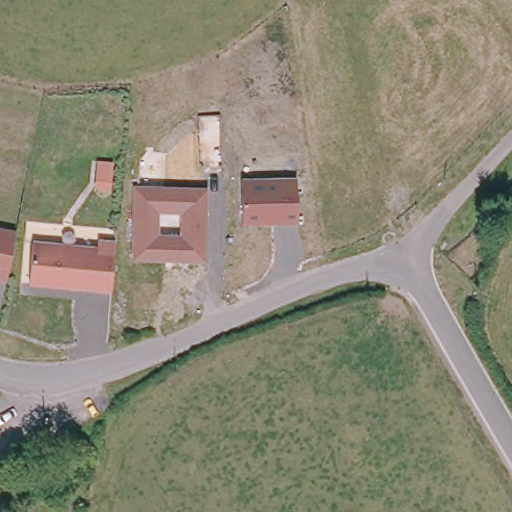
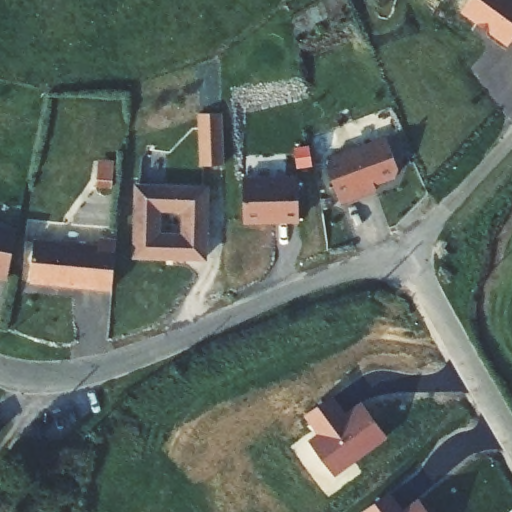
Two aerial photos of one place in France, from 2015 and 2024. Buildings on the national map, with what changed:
new [(512,39),(506,46),(462,13),(471,0),(512,0),(512,39)]
new [(224,166),(199,167),(197,115),(222,114),(224,166)]
new [(330,156),(387,133),(399,165),(395,173),(355,189),(357,194),(342,200),(328,166),(330,156)]
unchanged [(296,177),(297,221),(243,222),(242,178),(296,177)]
unchanged [(207,188),(205,265),(130,261),(134,185),(207,188)]
unchanged [(20,233),(10,282),(0,280),(0,230),(20,233)]
unchanged [(95,250),(97,241),(114,241),(112,293),(33,286),(37,244),(95,250)]
new [(347,412),(362,400),(387,438),(334,477),(308,440),(317,434),(305,415),(334,396),(347,412)]
new [(418,498),(429,512),(362,512),(390,492),(404,508),(418,498)]

